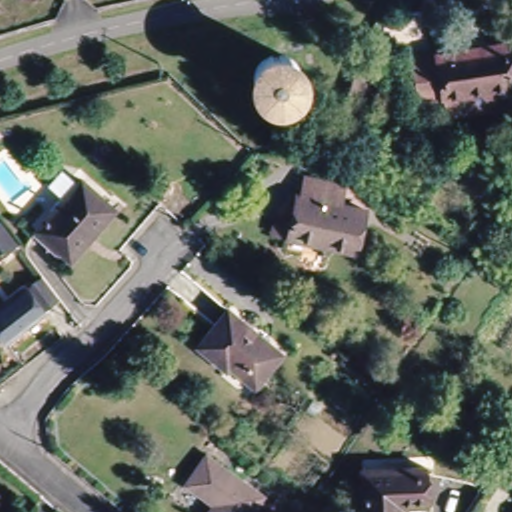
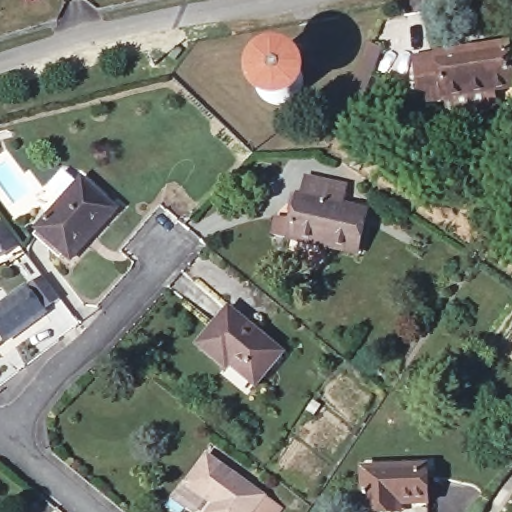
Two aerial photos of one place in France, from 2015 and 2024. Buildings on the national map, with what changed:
unchanged [(512,85),(493,88),(496,104),(449,111),(446,95),(421,99),(415,54),(508,40),(512,62),(512,85)]
unchanged [(340,154),(328,150),(368,46),(380,51),(340,154)]
unchanged [(275,213),(293,217),(298,194),(302,195),(307,174),(345,183),(341,201),(367,207),(357,250),(289,235),(271,231),(275,213)]
unchanged [(64,255),(37,231),(65,200),(52,190),(66,175),(78,185),(82,181),(116,211),(93,237),(71,261),(64,255)]
unchanged [(19,245),(1,258),(0,256),(0,225),(2,223),(19,245)]
unchanged [(1,343),(0,341),(0,303),(21,288),(22,290),(39,278),(55,299),(39,311),(40,314),(1,343)]
unchanged [(255,388),(230,367),(227,370),(198,347),(229,310),(282,354),(255,388)]
unchanged [(274,512),(206,512),(217,497),(212,493),(210,496),(187,480),(207,451),(280,504),(274,512)]
unchanged [(362,471),(426,468),(428,506),(401,507),(402,512),(364,512),(362,471)]

